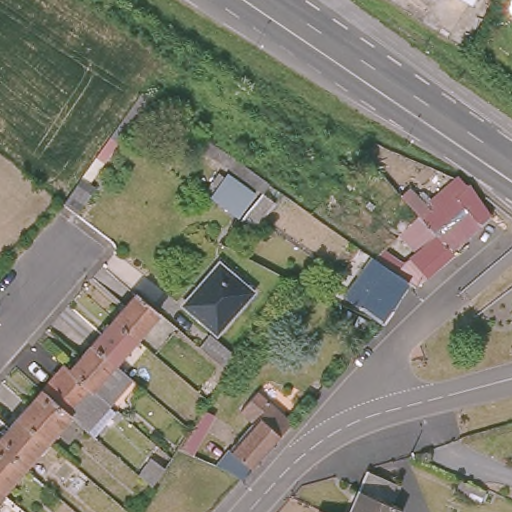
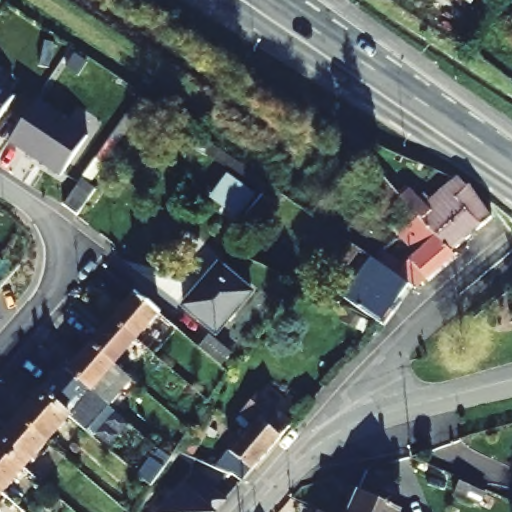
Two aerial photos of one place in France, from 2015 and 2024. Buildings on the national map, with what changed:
unchanged [(468,7),(456,0),(472,0),(468,7)]
unchanged [(506,10),(498,0),(512,0),(512,2),(512,1),(506,10)]
new [(0,113),(0,83),(12,91),(0,113)]
new [(9,141),(38,99),(89,133),(60,176),(9,141)]
unchanged [(257,196),(240,212),(218,188),(234,172),(257,196)]
unchanged [(99,185),(80,210),(66,200),(85,174),(99,185)]
unchanged [(407,204),(424,188),(428,193),(419,201),(426,207),(432,209),(450,192),(463,179),(486,213),(447,248),(415,212),(407,204)]
unchanged [(382,248),(399,267),(410,262),(424,248),(412,235),(405,241),(395,231),(415,212),(447,248),(450,251),(411,285),(404,280),(372,257),(382,248)]
unchanged [(404,280),(377,317),(340,291),(367,253),(372,257),(404,280)]
unchanged [(246,289),(211,328),(180,301),(216,261),(246,289)]
unchanged [(95,344),(117,318),(139,293),(161,312),(139,337),(117,363),(134,378),(112,405),(73,370),(95,344)]
unchanged [(229,354),(219,366),(196,346),(206,335),(229,354)]
unchanged [(73,370),(112,405),(90,430),(72,415),(51,396),(73,370)]
unchanged [(21,418),(44,391),(51,396),(72,415),(49,442),(21,418)]
unchanged [(301,424),(300,426),(253,480),(233,471),(232,458),(251,435),(261,423),(249,414),(265,394),(274,402),(277,404),(292,416),(301,424)]
unchanged [(49,442),(28,467),(0,444),(0,442),(21,418),(49,442)]
unchanged [(0,489),(0,444),(28,467),(5,493),(0,489)]
unchanged [(392,504),(402,509),(400,512),(348,512),(368,471),(401,486),(392,504)]
unchanged [(482,489),(477,503),(452,492),(458,479),(482,489)]
unchanged [(5,493),(0,499),(0,489),(5,493)]
unchanged [(322,512),(319,512),(320,511),(322,512)]

